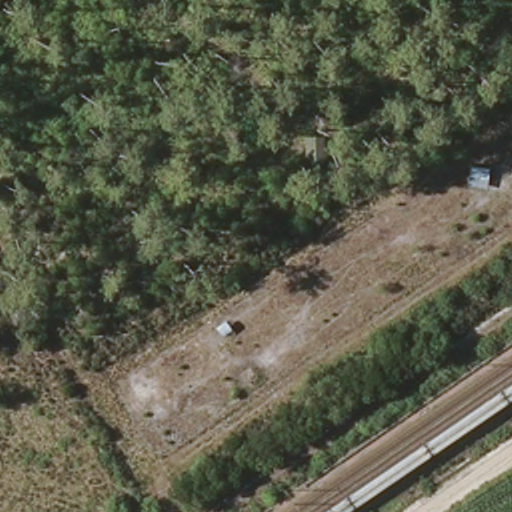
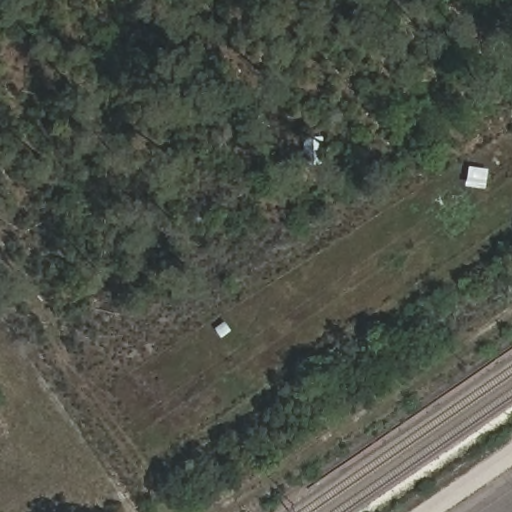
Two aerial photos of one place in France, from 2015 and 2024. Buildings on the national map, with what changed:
[]

